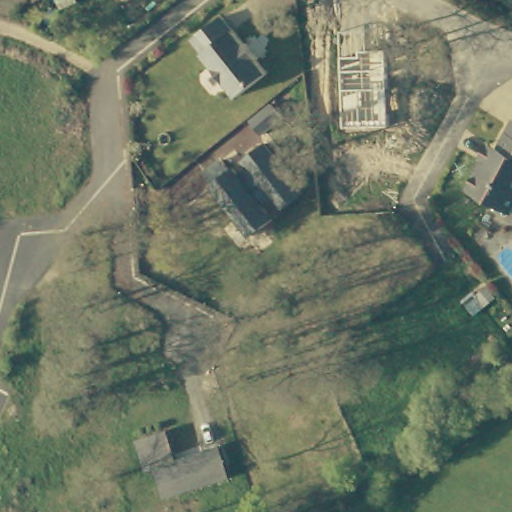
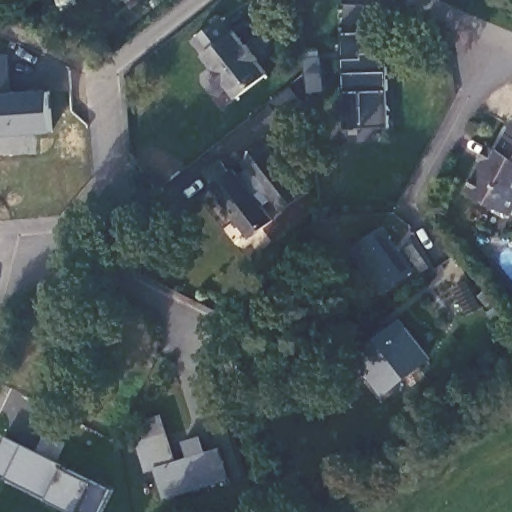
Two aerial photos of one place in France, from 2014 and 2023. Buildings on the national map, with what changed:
unchanged [(245,40),(250,37),(263,55),(261,59),(268,70),(237,95),(197,35),(205,27),(216,43),(237,26),(245,40)]
unchanged [(344,31),(370,31),(372,51),(388,51),(390,127),(347,130),(344,31)]
new [(7,92),(49,90),(52,132),(1,135),(0,123),(0,54),(7,54),(7,92)]
unchanged [(512,128),(512,210),(503,222),(488,215),(492,208),(465,192),(478,167),(484,170),(497,146),(502,148),(512,128)]
unchanged [(239,165),(267,142),(307,192),(283,211),(239,165)]
unchanged [(210,186),(213,182),(207,175),(225,161),(234,170),(275,220),(251,239),(210,186)]
new [(412,270),(380,293),(347,250),(381,227),(412,270)]
new [(431,358),(383,396),(352,357),(400,318),(431,358)]
unchanged [(156,470),(147,472),(139,440),(170,432),(177,459),(222,447),(232,480),(166,498),(156,470)]
new [(22,443),(63,466),(92,480),(109,490),(97,512),(83,512),(78,510),(77,512),(47,497),(5,476),(0,474),(0,444),(5,433),(22,443)]

